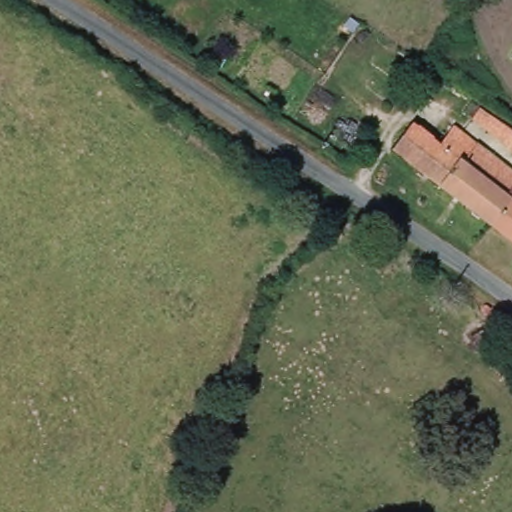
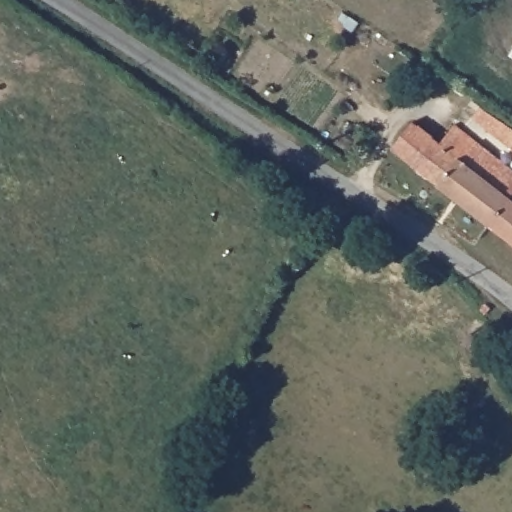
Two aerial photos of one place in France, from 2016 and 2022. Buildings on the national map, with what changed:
unchanged [(512,57),(512,60),(510,60),(512,57)]
unchanged [(476,124),(484,112),(512,131),(512,150),(476,124)]
unchanged [(392,150),(411,123),(439,143),(453,125),(512,168),(512,196),(491,224),(392,150)]
unchanged [(512,196),(512,239),(491,224),(512,196)]

